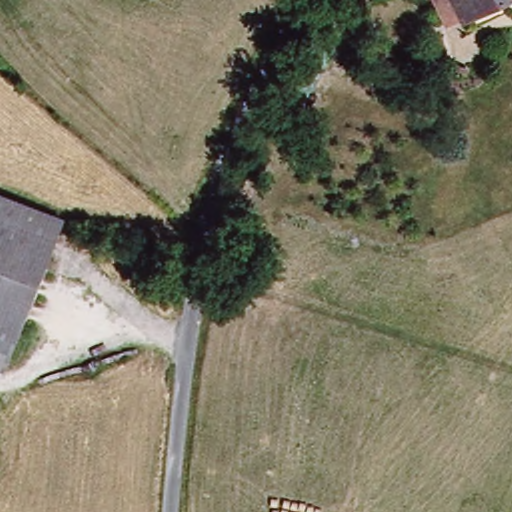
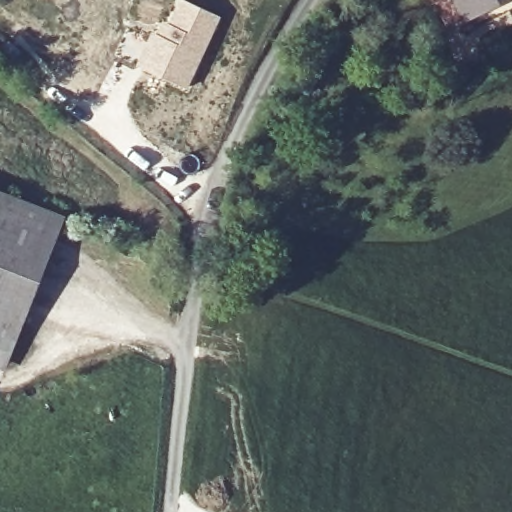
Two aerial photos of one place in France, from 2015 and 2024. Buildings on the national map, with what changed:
new [(156,34),(162,21),(167,24),(178,0),(185,0),(220,18),(187,88),(135,66),(150,31),(156,34)]
unchanged [(437,0),(500,0),(464,18),(462,13),(448,20),(437,0)]
unchanged [(287,88),(303,54),(324,64),(309,97),(287,88)]
unchanged [(9,338),(4,349),(0,358),(0,200),(62,232),(9,338)]

